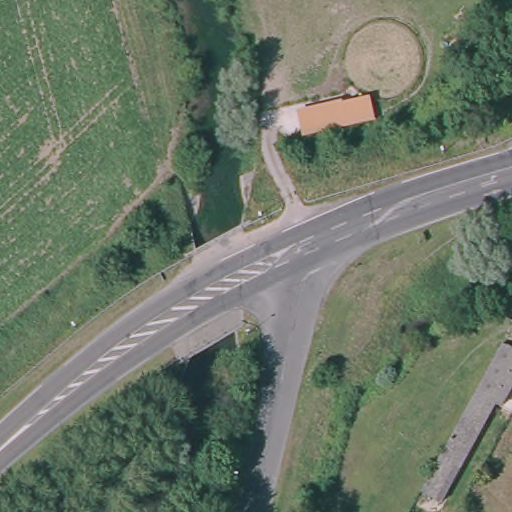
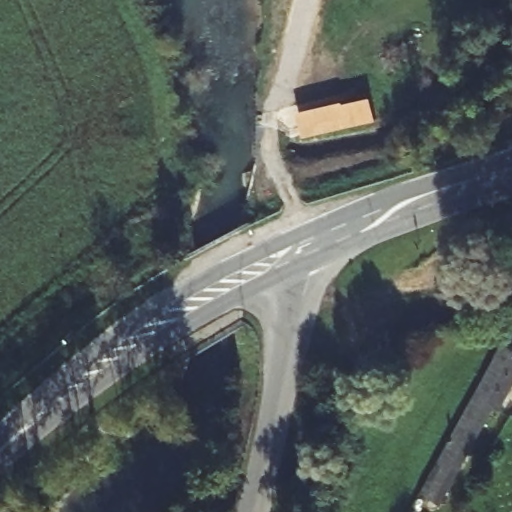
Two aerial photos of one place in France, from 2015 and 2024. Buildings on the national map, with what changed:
unchanged [(352,125),(305,135),(297,109),(345,99),(352,125)]
unchanged [(420,495),(441,456),(500,346),(512,352),(512,384),(502,404),(498,410),(492,406),(458,469),(439,506),(420,495)]

